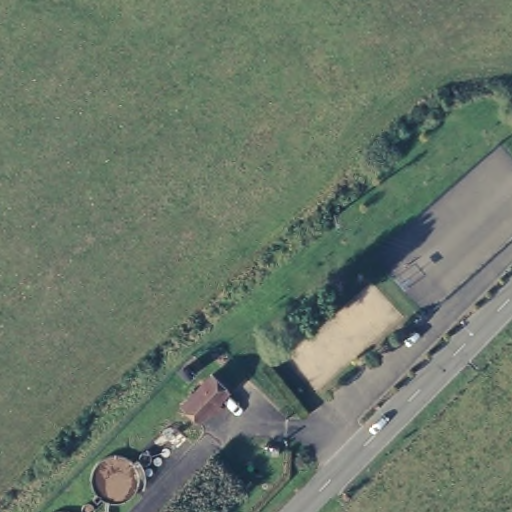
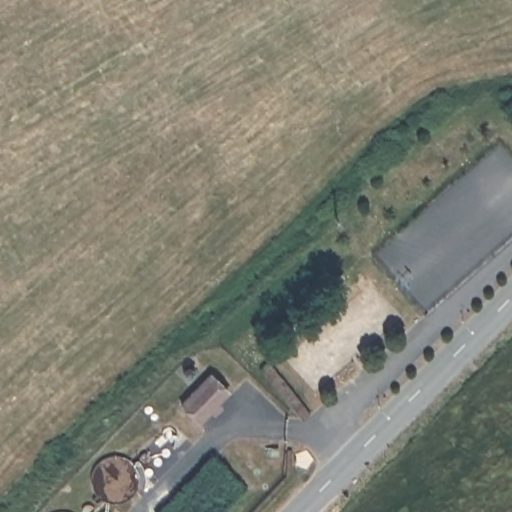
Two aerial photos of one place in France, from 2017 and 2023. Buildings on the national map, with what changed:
unchanged [(187,365),(188,364),(190,365),(192,365),(192,366),(193,366),(194,368),(195,369),(195,370),(195,371),(194,373),(193,374),(192,375),(191,376),(189,376),(187,376),(187,375),(185,375),(185,374),(184,374),(183,372),(183,371),(183,369),(183,368),(185,367),(185,366),(187,365)]
unchanged [(215,413),(210,408),(197,421),(182,405),(212,373),(228,389),(215,402),(221,407),(215,413)]
unchanged [(278,448),(278,455),(271,454),(272,447),(278,448)]

